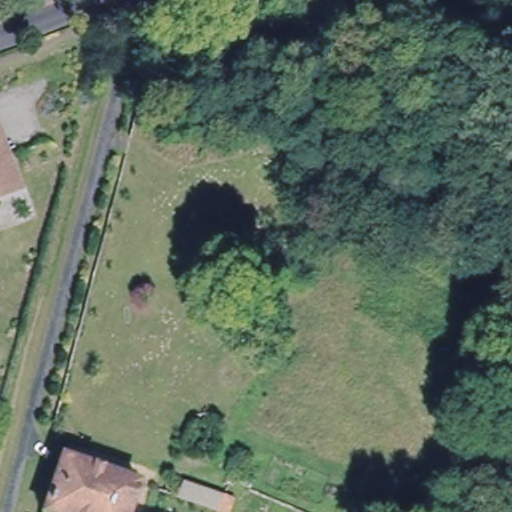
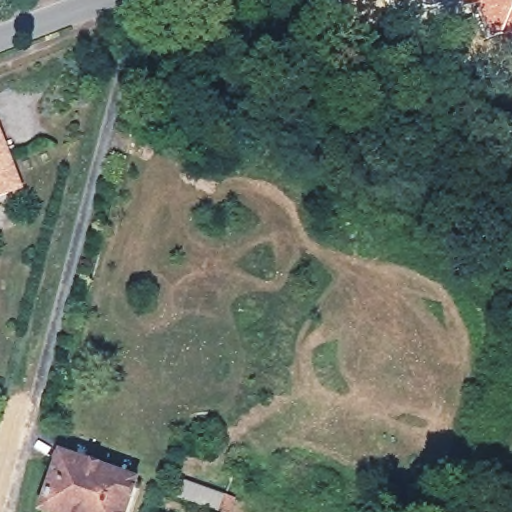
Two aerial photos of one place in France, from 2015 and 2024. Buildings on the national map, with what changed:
new [(511,49),(507,38),(496,42),(482,7),(469,11),(464,0),(512,0),(512,49),(511,49)]
unchanged [(25,186),(3,194),(0,195),(0,126),(10,148),(25,186)]
unchanged [(63,461),(65,455),(138,482),(128,512),(46,512),(63,461)]

